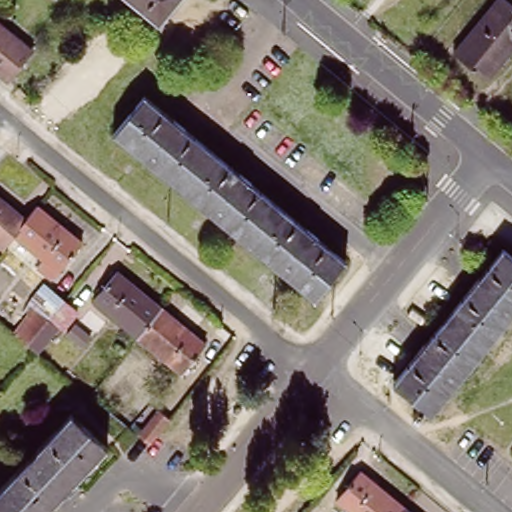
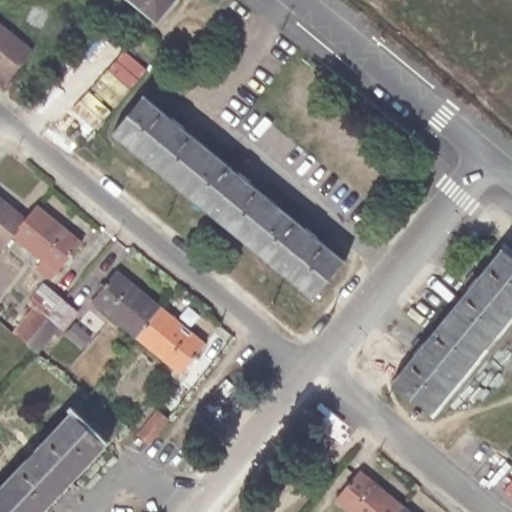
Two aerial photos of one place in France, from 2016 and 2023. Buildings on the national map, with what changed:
unchanged [(130,0),(178,0),(158,23),(130,0)]
demolished [(503,0),(512,7),(512,52),(487,82),(455,55),(500,0),(503,0)]
unchanged [(32,50),(8,80),(0,73),(0,23),(32,50)]
unchanged [(345,265),(315,300),(116,136),(145,100),(345,265)]
unchanged [(26,221),(13,237),(2,251),(0,249),(0,200),(26,221)]
unchanged [(82,245),(51,282),(37,271),(43,262),(13,237),(26,221),(37,208),(82,245)]
unchanged [(512,263),(512,312),(426,416),(389,386),(499,252),(512,263)]
unchanged [(161,310),(137,338),(94,303),(117,274),(161,310)]
unchanged [(28,310),(22,304),(42,280),(76,311),(68,321),(90,340),(78,350),(54,330),(34,353),(9,331),(28,310)]
unchanged [(206,347),(182,376),(137,338),(161,310),(206,347)]
unchanged [(103,324),(95,333),(82,322),(90,312),(103,324)]
unchanged [(170,416),(149,441),(139,432),(159,407),(170,416)]
unchanged [(70,417),(106,450),(47,512),(0,512),(0,491),(70,417)]
unchanged [(406,512),(348,512),(337,503),(360,475),(406,512)]

